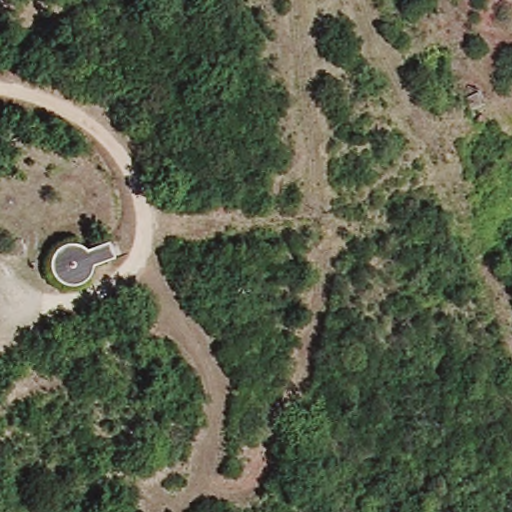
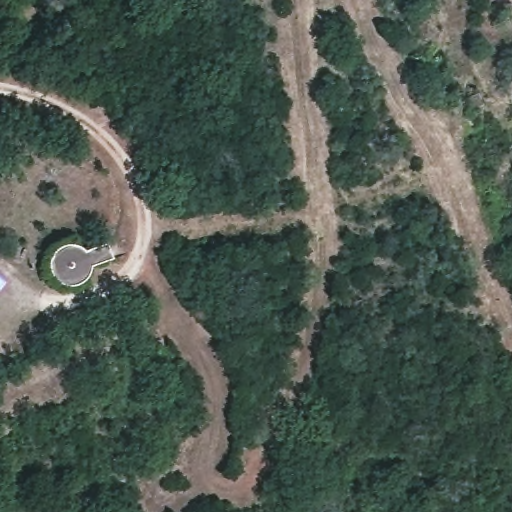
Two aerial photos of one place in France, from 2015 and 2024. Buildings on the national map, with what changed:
[]

